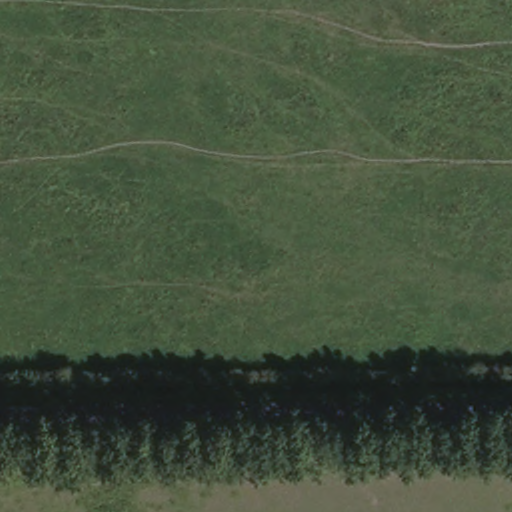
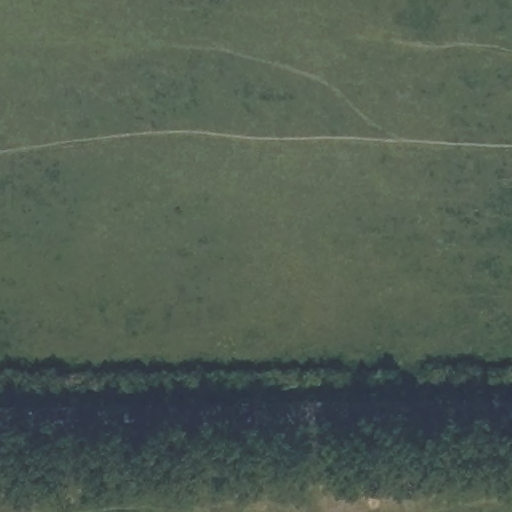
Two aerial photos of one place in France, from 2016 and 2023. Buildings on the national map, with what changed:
[]

